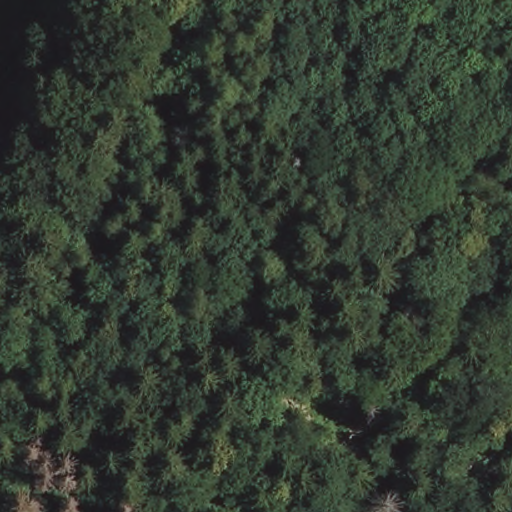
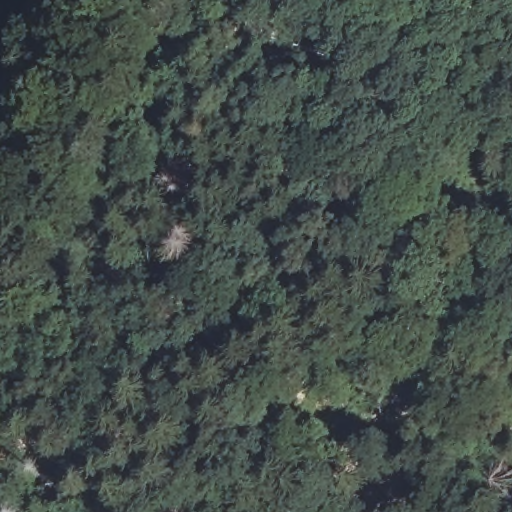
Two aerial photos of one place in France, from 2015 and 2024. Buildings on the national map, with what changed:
unchanged [(456,117),(435,142),(410,119),(430,94),(456,117)]

